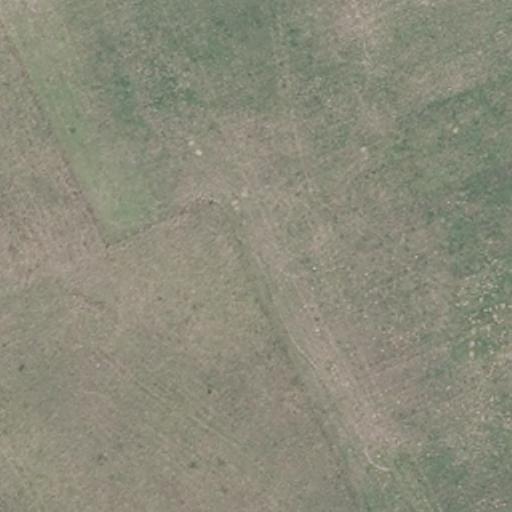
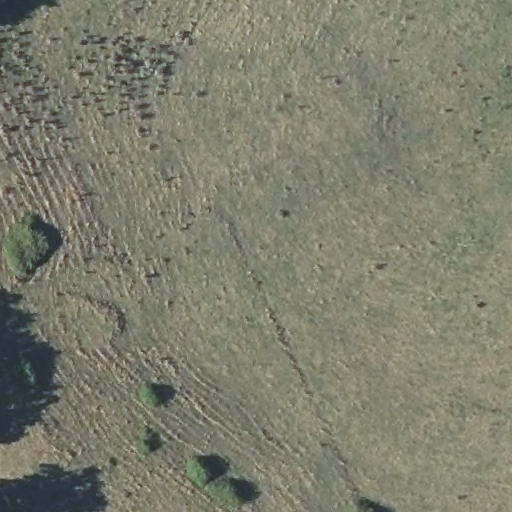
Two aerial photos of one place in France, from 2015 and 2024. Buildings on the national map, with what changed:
[]

